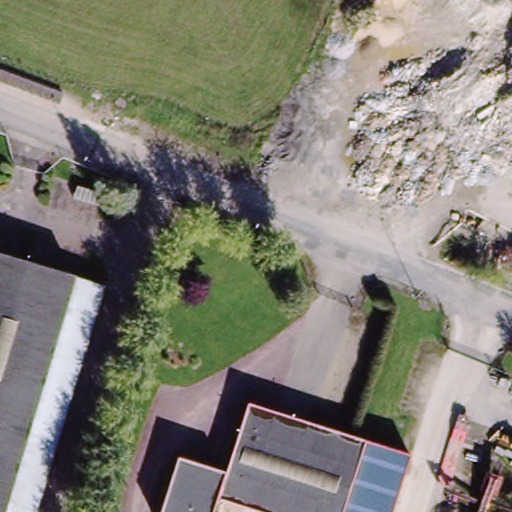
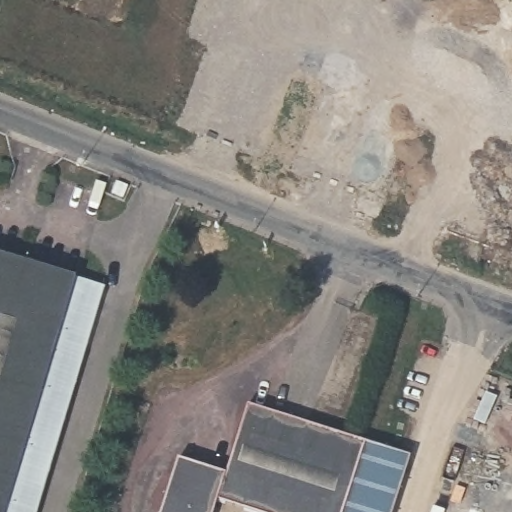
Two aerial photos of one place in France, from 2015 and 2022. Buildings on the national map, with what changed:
unchanged [(76,282),(83,284),(105,291),(36,512),(0,512),(0,258),(47,272),(76,282)]
unchanged [(410,456),(393,512),(243,512),(219,505),(217,512),(163,512),(178,464),(225,478),(247,409),(369,444),(410,456)]

